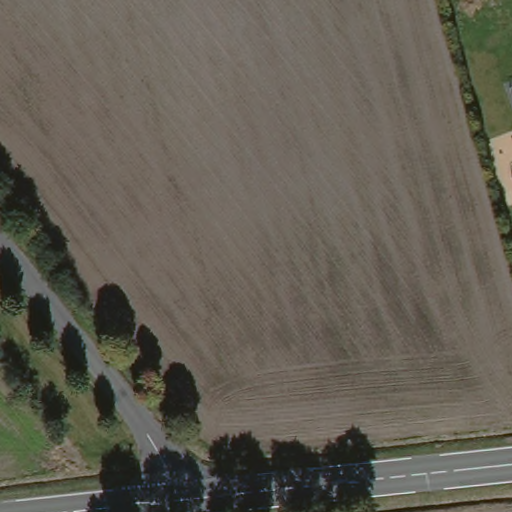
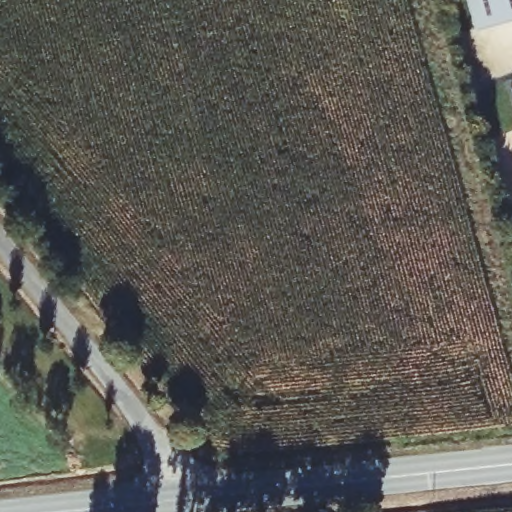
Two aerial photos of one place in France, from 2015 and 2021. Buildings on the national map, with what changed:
new [(512,22),(476,32),(467,0),(512,0),(512,22)]

